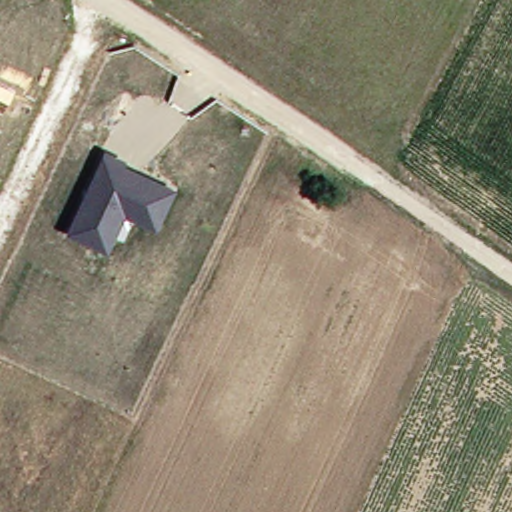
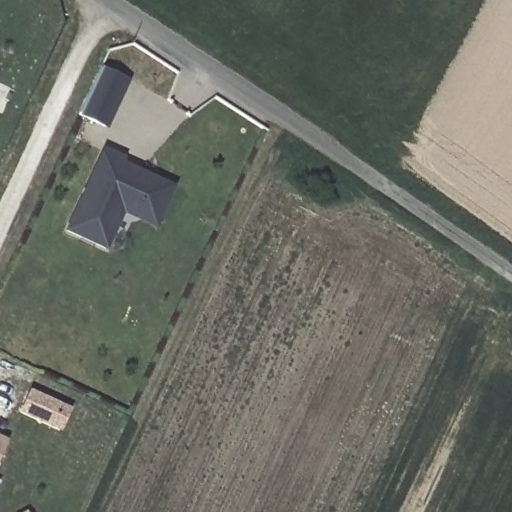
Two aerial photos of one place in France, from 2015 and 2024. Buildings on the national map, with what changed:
new [(101,68),(131,82),(108,130),(78,116),(101,68)]
unchanged [(129,160),(125,167),(174,189),(156,235),(122,220),(106,254),(62,234),(100,149),(129,160)]
new [(0,457),(0,439),(6,442),(0,457)]

